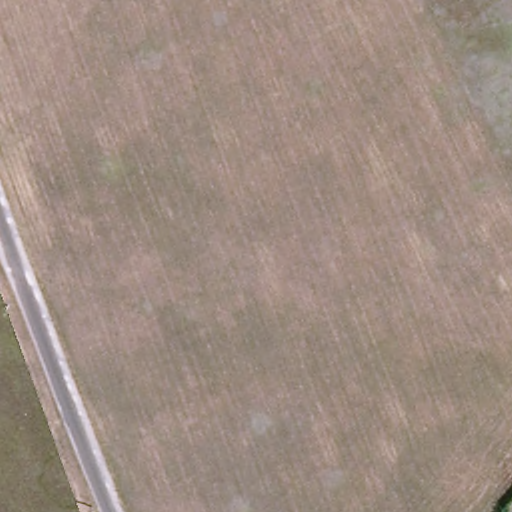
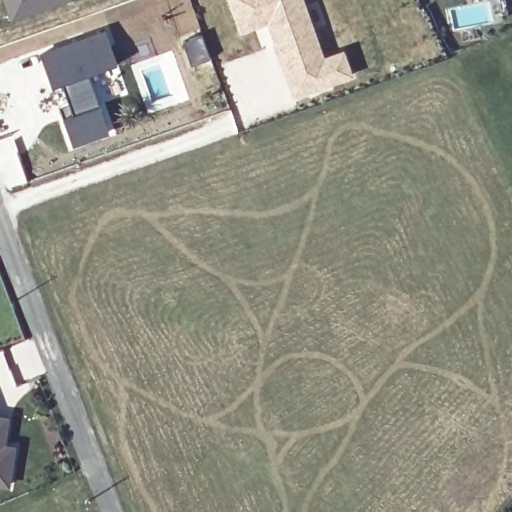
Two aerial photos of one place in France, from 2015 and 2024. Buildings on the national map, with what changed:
new [(2,0),(67,0),(11,21),(2,0)]
new [(264,15),(238,24),(229,0),(299,0),(318,54),(338,47),(346,70),(312,82),(289,90),(279,60),(264,15)]
new [(55,79),(45,83),(34,49),(99,26),(105,41),(111,60),(105,62),(82,70),(102,127),(65,139),(56,113),(52,101),(62,98),(66,109),(55,79)]
new [(8,416),(6,444),(13,444),(9,483),(0,482),(0,414),(8,416)]

